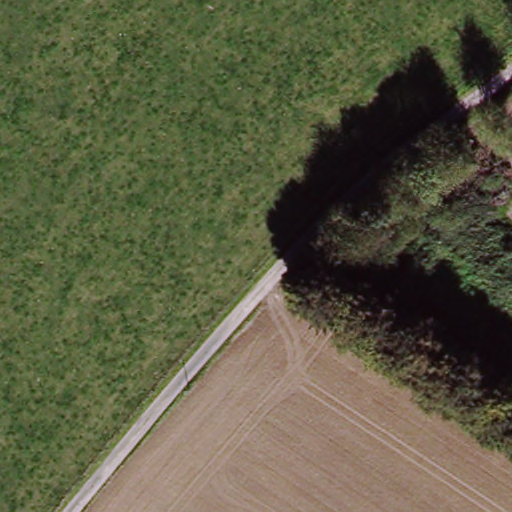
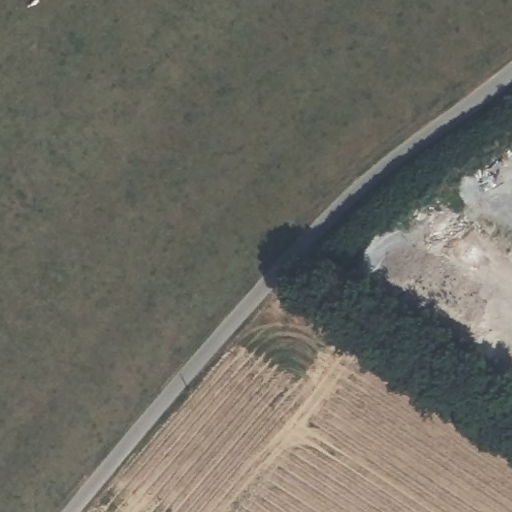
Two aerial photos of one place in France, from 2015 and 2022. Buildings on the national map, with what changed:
[]

